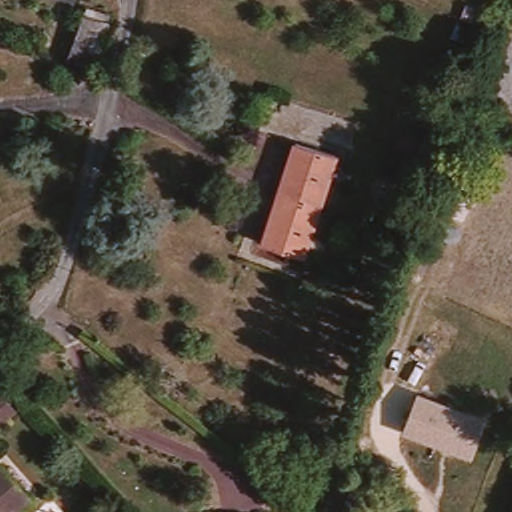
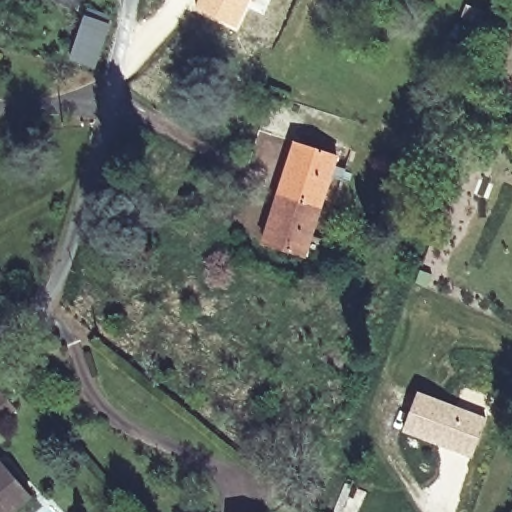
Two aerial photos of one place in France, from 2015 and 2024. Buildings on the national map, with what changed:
new [(249,0),(235,29),(193,8),(197,0),(249,0)]
unchanged [(90,10),(110,17),(91,68),(72,60),(90,10)]
unchanged [(297,147),(335,159),(319,208),(282,196),(297,147)]
unchanged [(304,254),(267,243),(282,196),(319,208),(304,254)]
unchanged [(19,408),(0,425),(0,389),(2,387),(19,408)]
unchanged [(487,418),(471,460),(403,434),(418,391),(487,418)]
unchanged [(27,498),(10,512),(0,512),(0,468),(27,498)]
unchanged [(364,493),(355,512),(346,512),(356,489),(364,493)]

